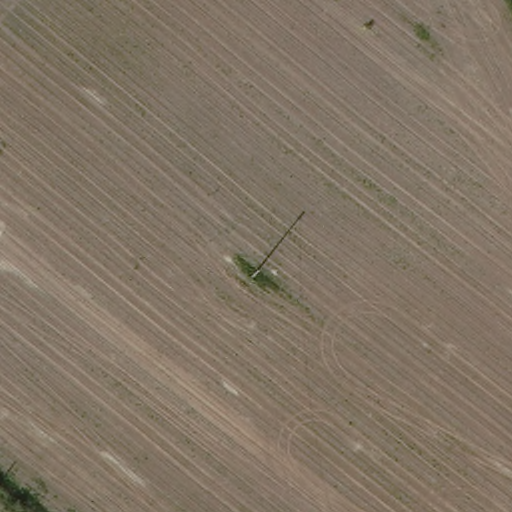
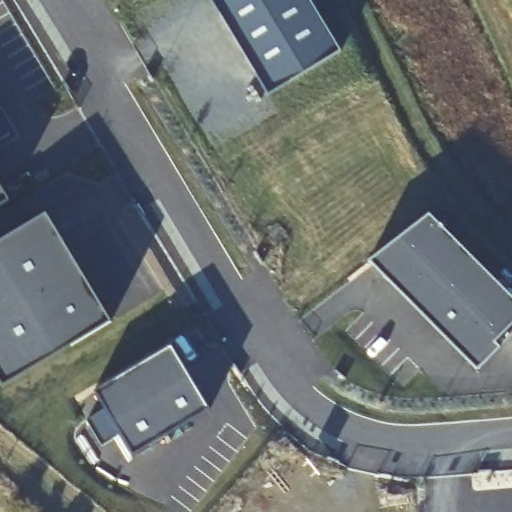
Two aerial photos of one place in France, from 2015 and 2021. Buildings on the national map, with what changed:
new [(342,51),(256,102),(195,0),(311,0),(342,51)]
new [(7,137),(0,142),(0,125),(7,137)]
new [(7,203),(0,207),(0,191),(7,203)]
new [(53,211),(118,320),(10,385),(0,368),(0,243),(53,211)]
new [(512,325),(512,333),(476,369),(362,265),(426,216),(512,325)]
new [(170,347),(209,411),(132,458),(93,393),(170,347)]

